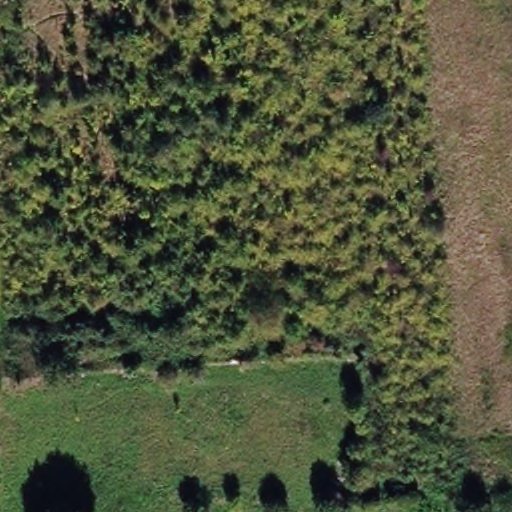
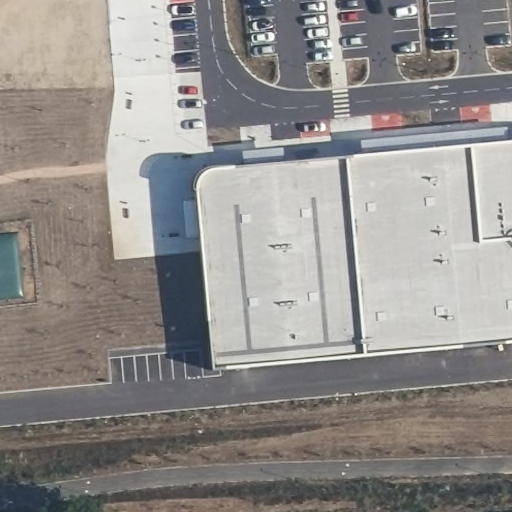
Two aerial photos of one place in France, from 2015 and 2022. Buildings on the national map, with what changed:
new [(199,178),(203,172),(209,169),(214,168),(512,141),(512,342),(212,370),(196,190),(196,184),(199,178)]

